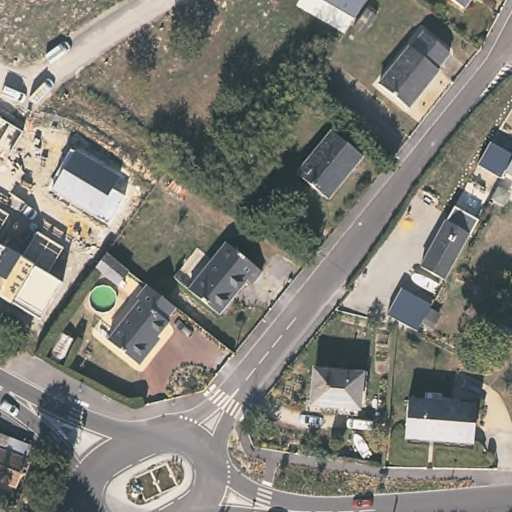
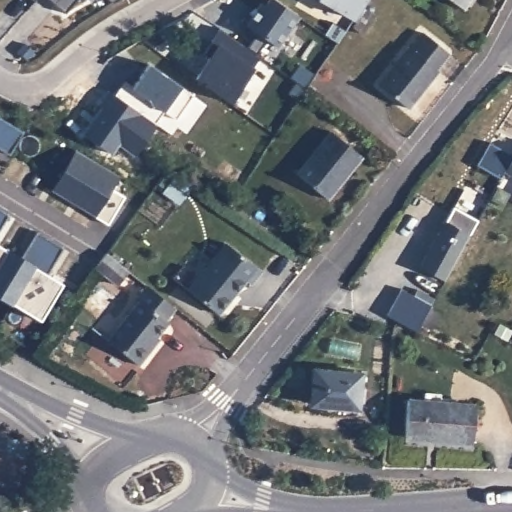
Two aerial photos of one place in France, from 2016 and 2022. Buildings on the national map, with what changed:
new [(66,12),(52,0),(75,0),(66,12)]
new [(113,2),(111,0),(116,0),(113,2)]
new [(208,56),(204,52),(221,28),(250,46),(258,33),(245,24),(240,20),(247,11),(253,16),(261,2),(266,5),(269,0),(277,0),(299,15),(278,47),(267,39),(258,53),(264,57),(254,67),(230,103),(194,77),(208,56)]
unchanged [(352,19),(320,0),(366,0),(352,19)]
unchanged [(383,5),(376,17),(368,12),(374,0),(375,0),(383,5)]
unchanged [(462,12),(446,0),(470,0),(462,12)]
unchanged [(453,53),(440,69),(442,70),(411,108),(380,83),(411,45),(412,46),(425,31),(453,53)]
new [(125,80),(134,87),(150,64),(181,86),(193,94),(176,117),(164,109),(155,121),(115,93),(125,80)]
unchanged [(0,146),(0,116),(24,131),(11,152),(0,146)]
unchanged [(364,155),(330,198),(297,172),(333,130),(364,155)]
unchanged [(508,148),(495,172),(480,163),(493,141),(508,148)]
unchanged [(52,191),(77,150),(120,176),(113,188),(127,196),(110,226),(96,219),(97,216),(52,191)]
unchanged [(512,156),(512,170),(506,167),(512,156)]
unchanged [(10,215),(0,232),(0,209),(10,215)]
unchanged [(471,232),(460,252),(446,278),(423,264),(447,219),(471,232)]
unchanged [(14,302),(13,306),(0,298),(0,243),(23,256),(38,232),(63,248),(50,275),(64,283),(41,317),(14,302)]
unchanged [(264,269),(254,282),(249,279),(222,312),(191,288),(229,241),(264,269)]
unchanged [(119,262),(132,272),(122,286),(100,269),(110,255),(119,262)]
unchanged [(179,310),(170,323),(172,324),(155,347),(157,349),(143,367),(112,343),(143,302),(141,300),(150,286),(179,310)]
unchanged [(429,300),(416,328),(392,317),(405,288),(429,300)]
unchanged [(367,370),(364,407),(313,403),(315,366),(367,370)]
unchanged [(478,404),(474,439),(408,433),(411,398),(478,404)]
unchanged [(24,443),(31,447),(27,457),(27,461),(16,488),(0,482),(0,434),(24,443)]

